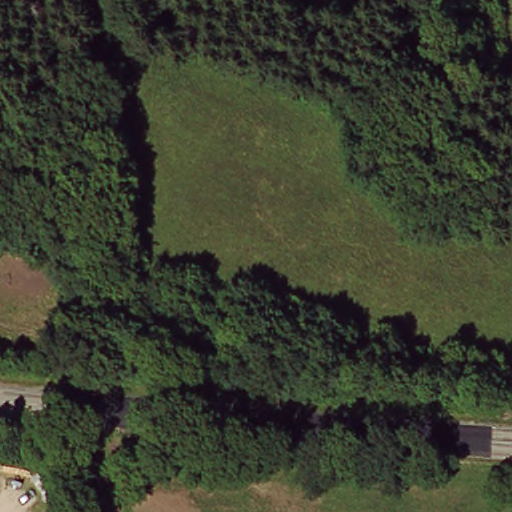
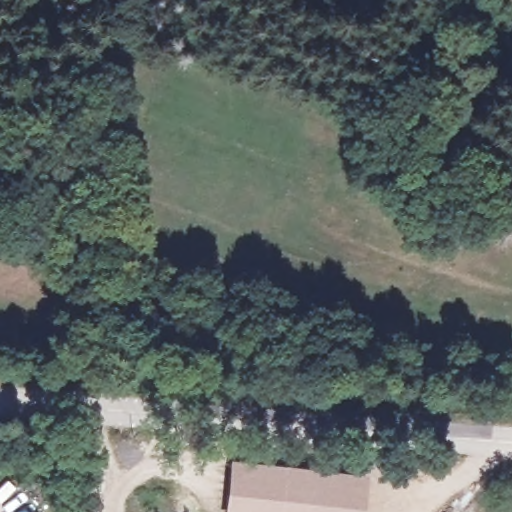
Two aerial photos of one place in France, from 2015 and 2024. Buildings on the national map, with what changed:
new [(230,459),(370,474),(365,512),(225,512),(230,459)]

